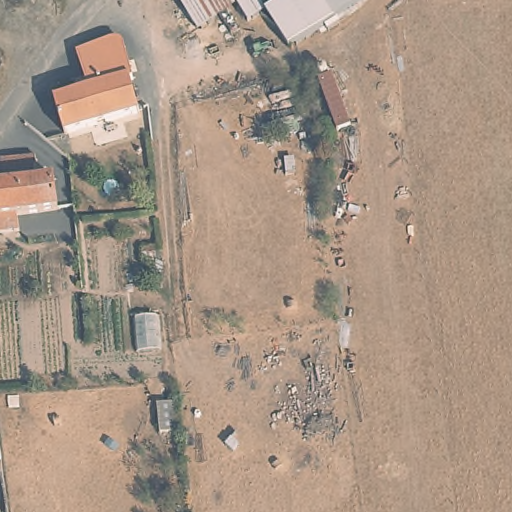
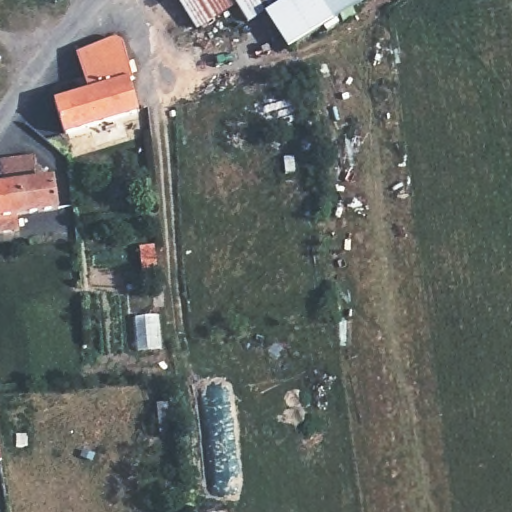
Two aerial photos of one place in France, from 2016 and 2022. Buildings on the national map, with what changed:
unchanged [(175,0),(230,0),(236,10),(195,34),(175,0)]
unchanged [(288,48),(262,15),(260,17),(244,25),(239,16),(236,10),(230,0),(285,0),(286,1),(288,0),(320,0),(330,18),(288,48)]
unchanged [(330,18),(320,0),(359,0),(330,18)]
unchanged [(59,137),(53,102),(85,92),(74,55),(107,45),(111,45),(114,46),(117,48),(119,52),(127,80),(122,82),(132,116),(59,137)]
unchanged [(1,170),(32,165),(36,189),(51,187),(55,216),(0,226),(0,194),(2,194),(1,170)]

